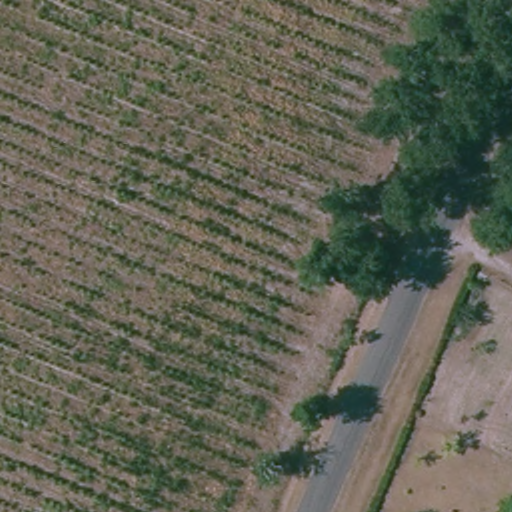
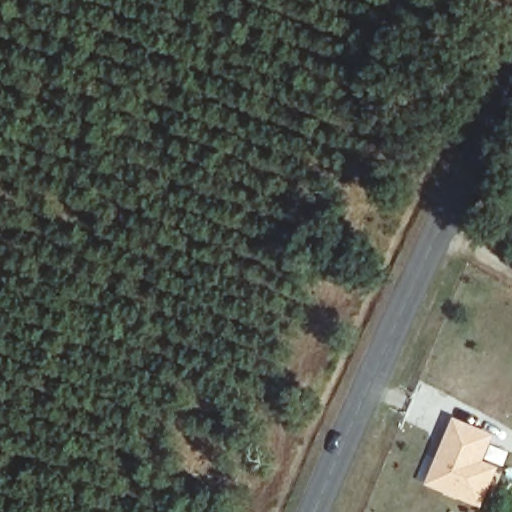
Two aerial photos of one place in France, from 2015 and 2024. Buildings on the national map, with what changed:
new [(453,418),(494,436),(491,444),(509,452),(503,467),(500,466),(482,508),(426,485),(453,418)]

